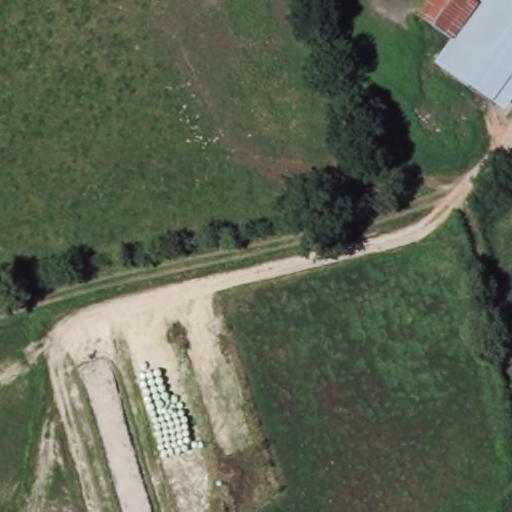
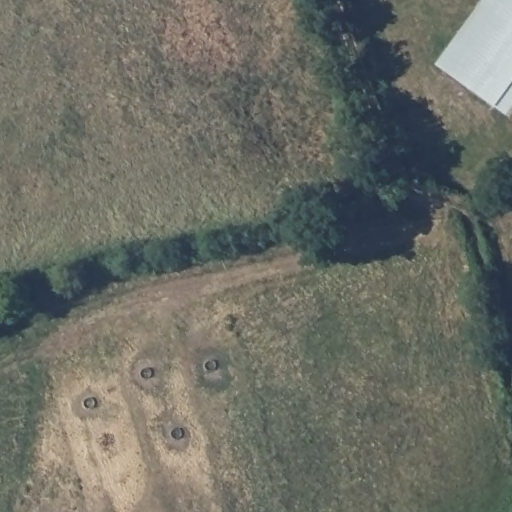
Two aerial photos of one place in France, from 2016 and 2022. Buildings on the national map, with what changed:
unchanged [(423,23),(438,0),(469,0),(479,7),(455,44),(423,23)]
unchanged [(506,116),(440,67),(455,44),(479,7),(484,0),(512,0),(512,109),(506,116)]

